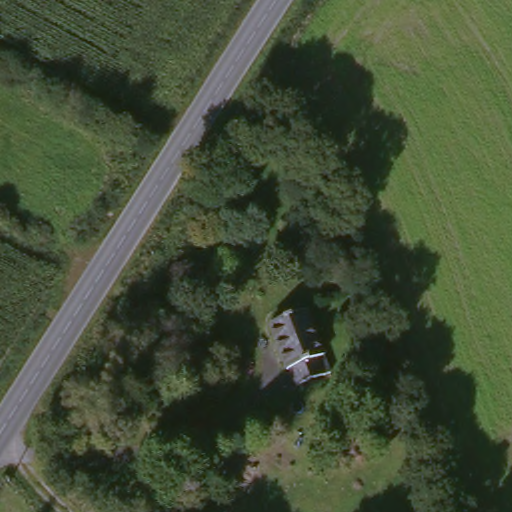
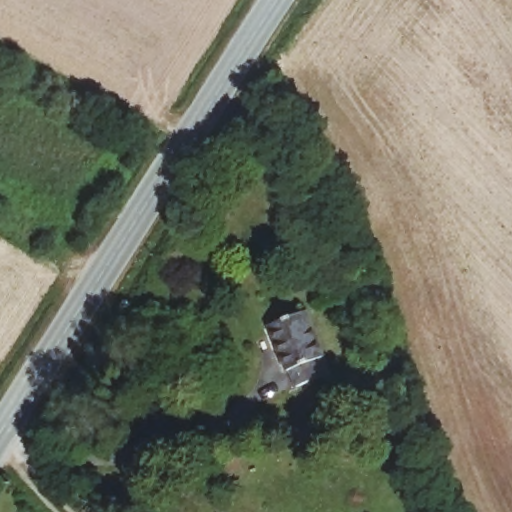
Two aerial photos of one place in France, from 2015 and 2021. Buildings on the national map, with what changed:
unchanged [(278,318),(314,304),(334,351),(327,353),(333,368),(303,381),(278,318)]

